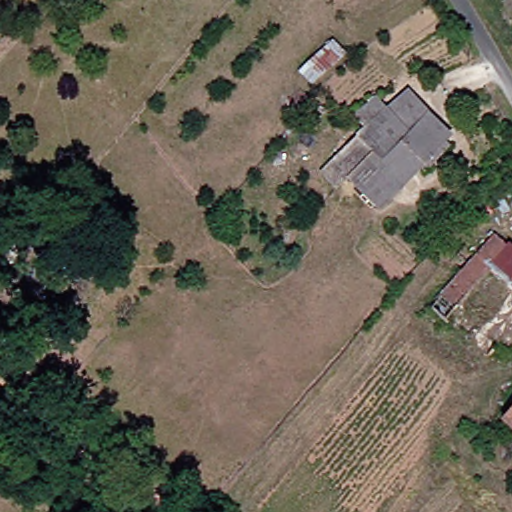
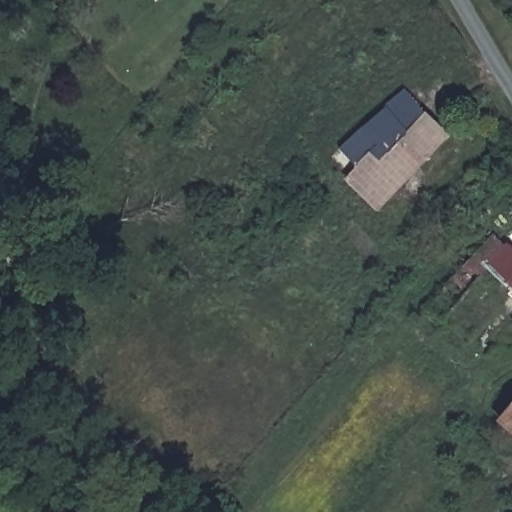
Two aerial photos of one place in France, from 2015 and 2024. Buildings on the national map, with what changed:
unchanged [(327,167),(382,106),(397,90),(422,114),(443,135),(441,137),(447,142),(422,170),(417,166),(375,211),(327,167)]
unchanged [(495,257),(507,247),(512,252),(512,324),(510,325),(475,294),(459,311),(454,306),(437,325),(424,312),(484,247),(495,257)]
unchanged [(512,436),(499,424),(512,409),(512,436)]

